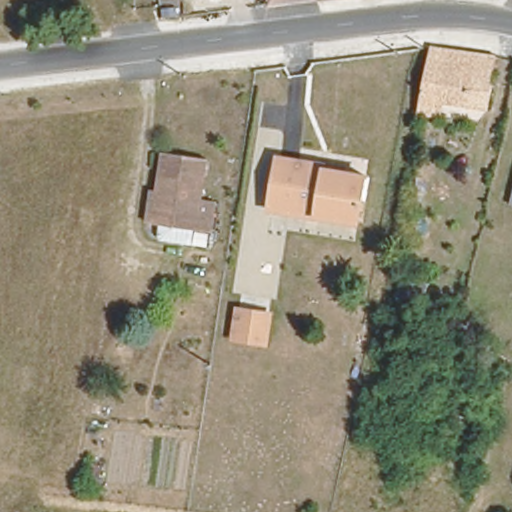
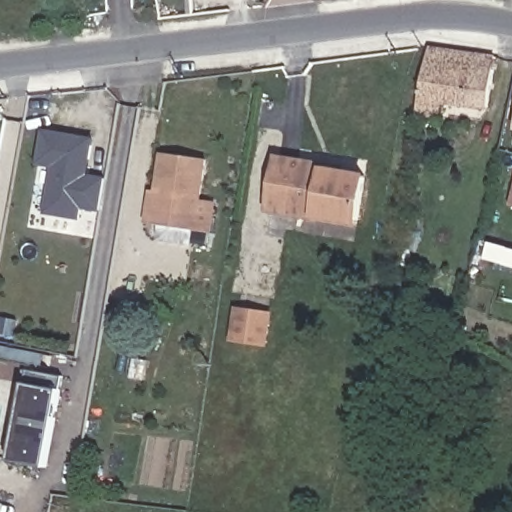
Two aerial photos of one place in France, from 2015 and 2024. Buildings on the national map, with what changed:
unchanged [(498,54),(489,109),(420,99),(430,44),(498,54)]
new [(44,214),(52,169),(35,165),(42,128),(95,138),(89,175),(106,178),(100,212),(83,209),(81,220),(44,214)]
unchanged [(156,188),(162,189),(169,153),(209,160),(203,199),(217,202),(211,232),(196,229),(193,245),(164,239),(161,234),(163,224),(156,222),(150,221),(156,188)]
unchanged [(282,158),(326,167),(325,171),(367,179),(358,228),(273,212),(282,158)]
unchanged [(510,200),(512,193),(512,200),(510,200)]
unchanged [(274,312),(269,349),(230,343),(237,307),(274,312)]
unchanged [(369,325),(394,332),(388,361),(363,356),(369,325)]
new [(60,390),(45,468),(12,462),(26,383),(28,370),(63,376),(60,390)]
unchanged [(463,441),(424,432),(425,424),(414,422),(418,399),(450,406),(452,398),(472,401),(463,441)]

